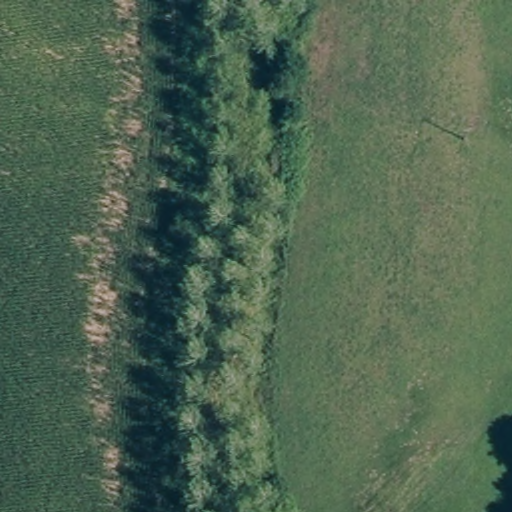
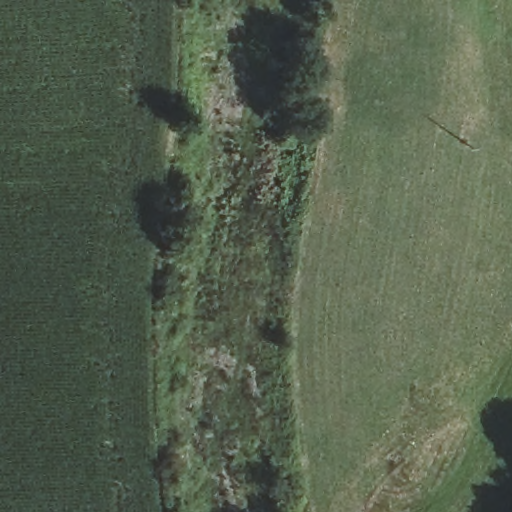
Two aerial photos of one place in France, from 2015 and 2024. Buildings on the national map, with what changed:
[]

